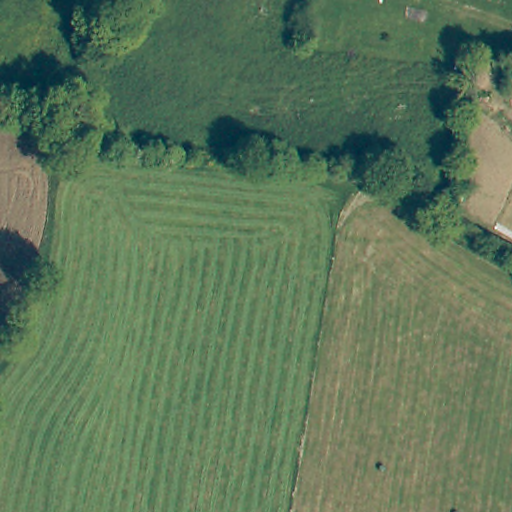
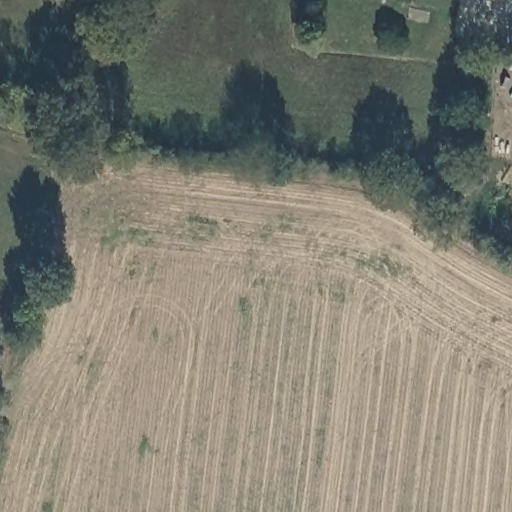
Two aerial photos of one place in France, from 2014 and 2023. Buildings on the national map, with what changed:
unchanged [(436,207),(434,205),(433,204),(432,203),(431,200),(431,199),(431,197),(432,195),(433,194),(434,192),(436,190),(438,190),(440,189),(442,189),(443,189),(445,190),(447,192),(448,193),(449,194),(450,197),(450,199),(450,200),(450,201),(449,202),(448,204),(447,205),(445,207),(444,207),(442,208),(440,208),(438,208),(436,207)]

